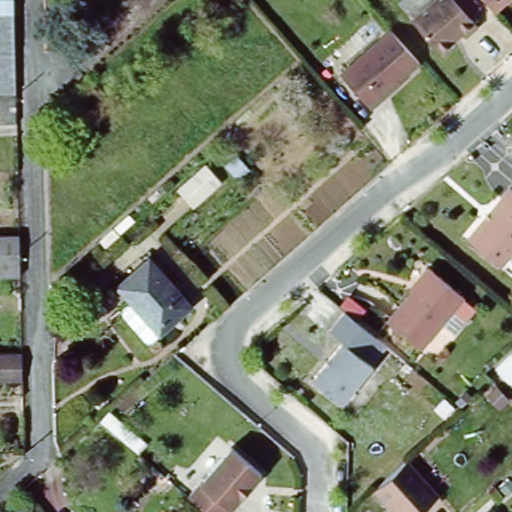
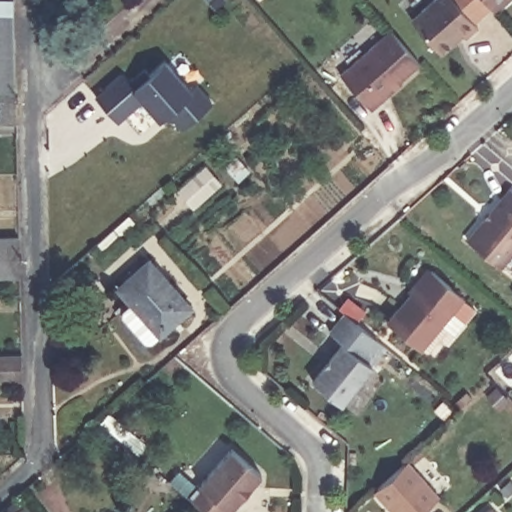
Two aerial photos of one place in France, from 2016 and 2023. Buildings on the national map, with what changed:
unchanged [(3,109),(2,79),(0,79),(0,0),(14,0),(16,79),(17,108),(3,109)]
unchanged [(438,0),(458,0),(482,27),(469,38),(466,34),(445,53),(416,20),(438,0)]
unchanged [(498,8),(491,0),(507,0),(498,8)]
unchanged [(424,64),(385,96),(387,99),(374,109),(344,73),(395,30),(424,64)]
new [(122,78),(130,86),(144,73),(149,78),(164,64),(191,94),(197,88),(212,105),(183,131),(169,115),(161,123),(143,102),(118,125),(96,101),(122,78)]
unchanged [(203,207),(185,188),(213,165),(231,183),(203,207)]
unchanged [(472,237),(512,185),(512,254),(505,263),(472,237)]
unchanged [(0,277),(0,241),(18,239),(18,258),(18,276),(0,277)]
unchanged [(154,335),(119,282),(151,260),(188,309),(154,335)]
unchanged [(470,297),(425,349),(394,323),(438,271),(470,297)]
unchanged [(347,310),(387,346),(376,359),(350,338),(346,343),(332,328),(347,310)]
unchanged [(376,359),(379,361),(347,399),(319,376),(346,343),(350,338),(376,359)]
unchanged [(19,382),(0,382),(0,358),(19,357),(19,382)]
unchanged [(267,474),(233,512),(212,512),(194,496),(237,448),(267,474)]
unchanged [(427,512),(399,512),(380,491),(411,461),(444,496),(427,512)]
unchanged [(491,512),(495,508),(499,512),(491,512)]

